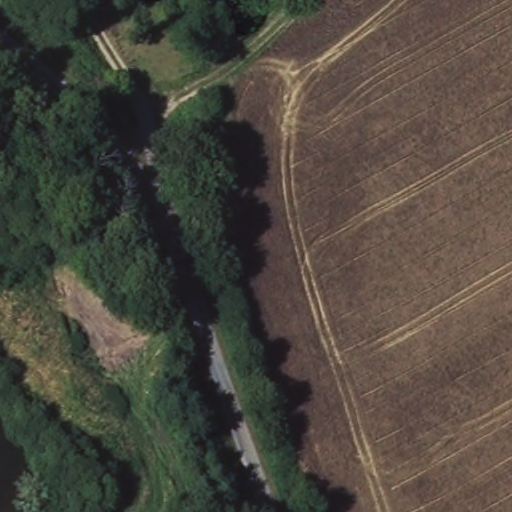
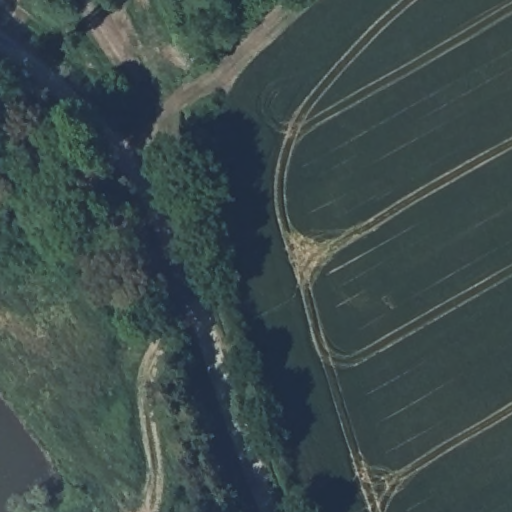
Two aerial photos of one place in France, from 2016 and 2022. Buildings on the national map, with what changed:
unchanged [(0,181),(0,169),(6,176),(0,181)]

